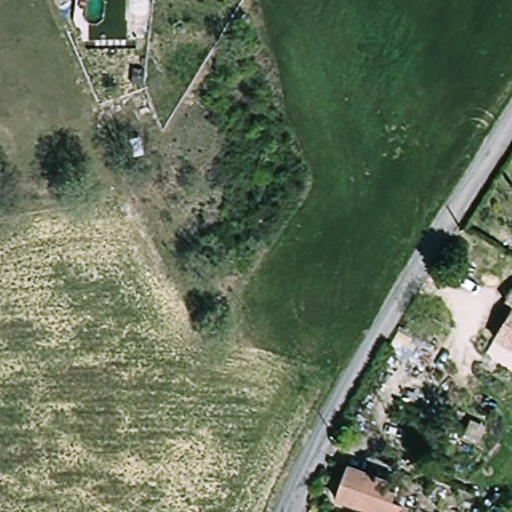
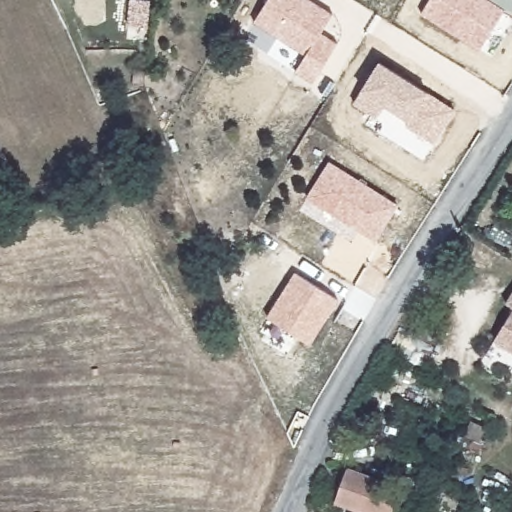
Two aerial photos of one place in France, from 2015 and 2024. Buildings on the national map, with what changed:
new [(321,33),(337,43),(312,82),(296,72),(305,56),(254,22),(267,0),(311,0),(333,14),(321,33)]
new [(504,11),(479,51),(420,15),(429,0),(512,0),(512,16),(504,11)]
new [(428,91),(455,110),(434,143),(405,126),(408,121),(384,106),(376,119),(352,104),(360,90),(379,61),(428,91)]
new [(399,205),(375,241),(306,198),(329,161),(399,205)]
new [(339,300),(310,345),(267,318),(295,273),(339,300)]
unchanged [(504,299),(512,286),(512,285),(512,304),(504,299)]
unchanged [(512,307),(512,347),(495,337),(512,307)]
unchanged [(394,349),(416,315),(441,322),(428,366),(394,349)]
unchanged [(408,487),(400,512),(359,512),(361,505),(340,498),(350,467),(408,487)]

